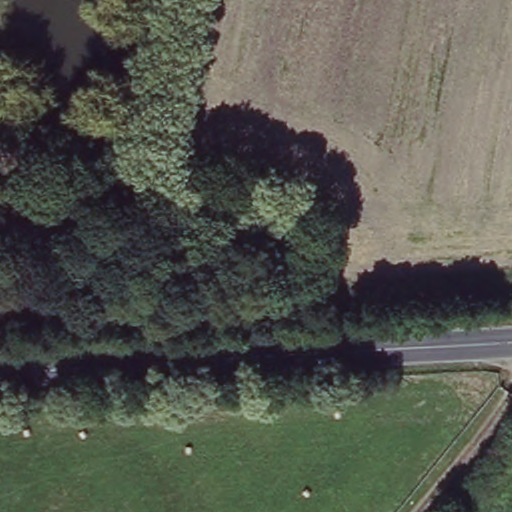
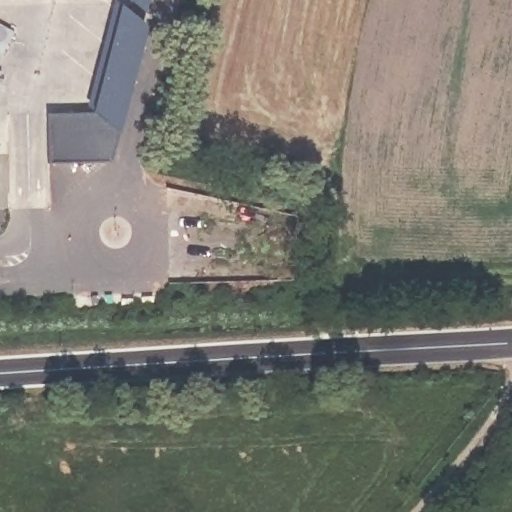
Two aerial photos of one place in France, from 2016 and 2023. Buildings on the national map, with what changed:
new [(117,161),(53,162),(51,111),(99,111),(125,0),(157,0),(117,161)]

